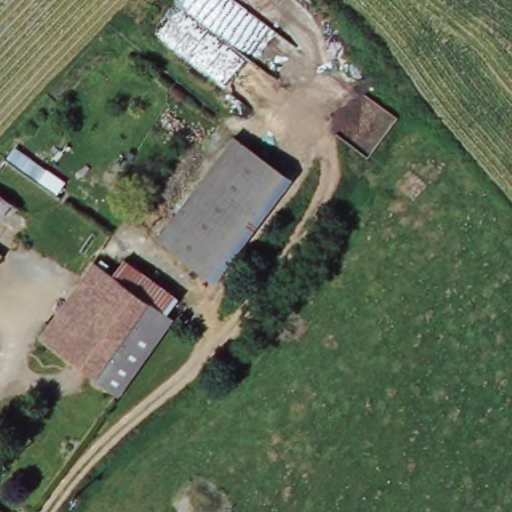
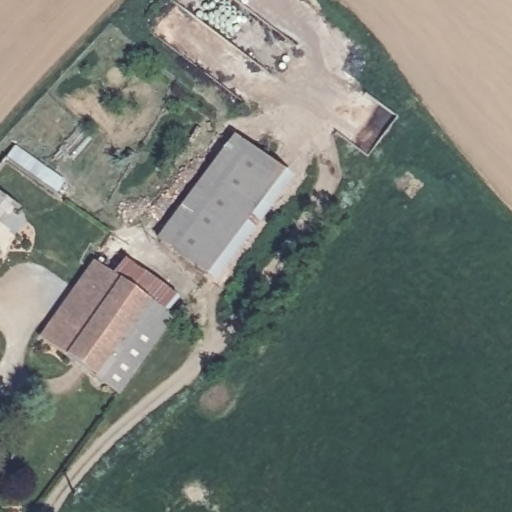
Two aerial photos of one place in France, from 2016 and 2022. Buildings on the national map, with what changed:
unchanged [(289,176),(215,276),(164,239),(236,138),(289,176)]
unchanged [(17,143),(49,167),(40,178),(8,155),(17,143)]
unchanged [(21,231),(0,217),(0,192),(35,216),(21,231)]
unchanged [(0,260),(0,250),(4,253),(0,260)]
unchanged [(119,399),(39,341),(93,263),(172,318),(140,366),(119,399)]

